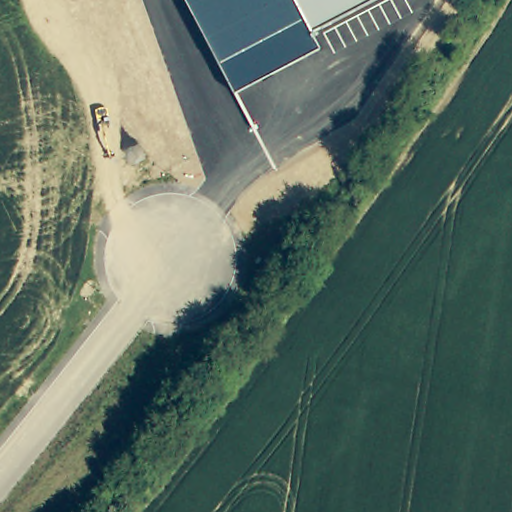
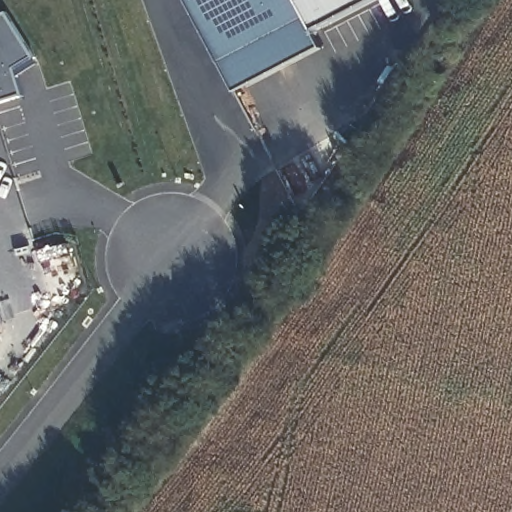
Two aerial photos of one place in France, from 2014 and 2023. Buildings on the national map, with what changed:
unchanged [(311,32),(320,48),(234,92),(187,0),(372,0),(311,32)]
new [(16,79),(22,96),(0,103),(0,17),(5,14),(38,64),(16,79)]

